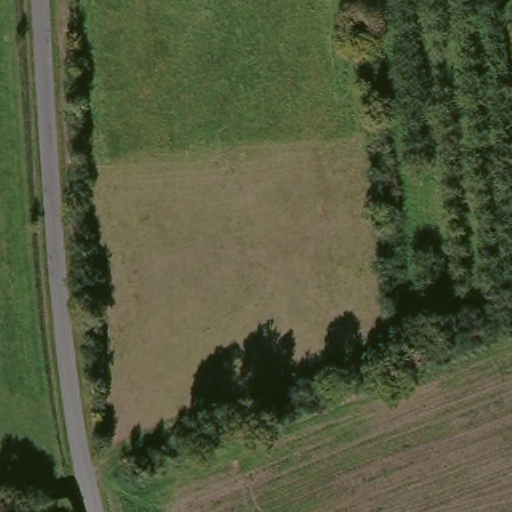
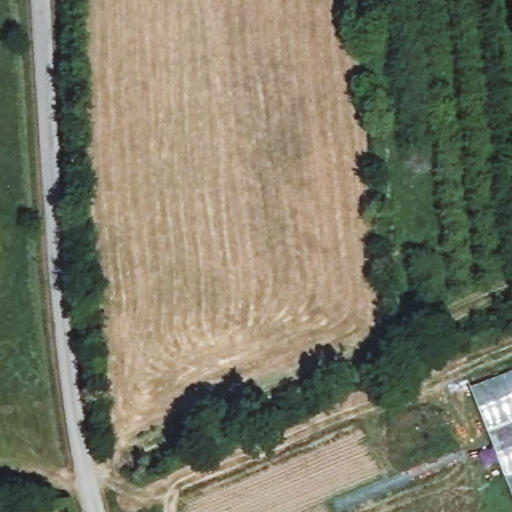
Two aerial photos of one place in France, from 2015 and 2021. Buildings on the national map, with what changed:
new [(512,370),(512,500),(468,388),(512,370)]

